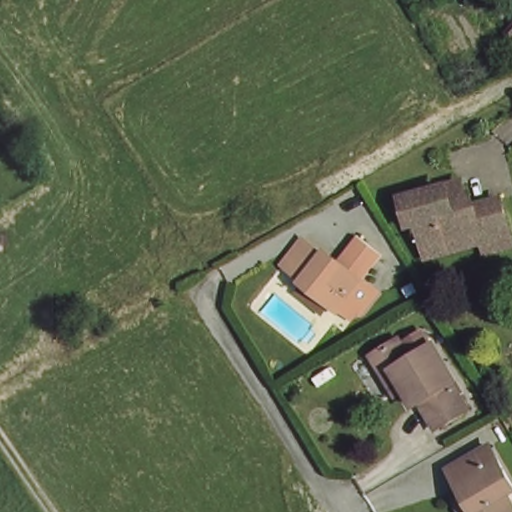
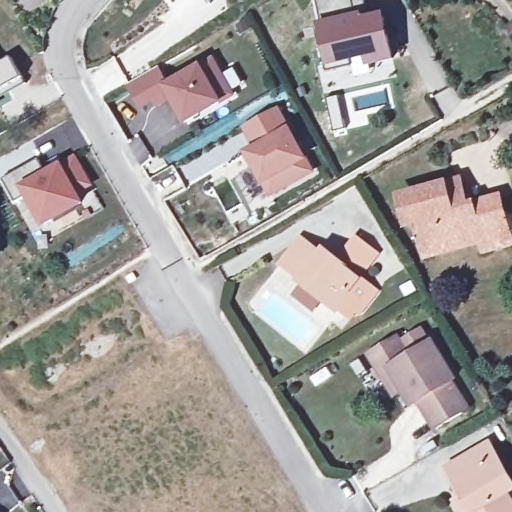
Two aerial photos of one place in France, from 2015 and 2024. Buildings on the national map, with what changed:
new [(326,69),(316,22),(324,20),(318,0),(367,0),(372,16),(384,14),(396,64),(366,69),(364,61),(326,69)]
new [(0,98),(0,64),(10,59),(22,79),(26,84),(0,98)]
new [(157,70),(168,88),(213,62),(233,96),(188,124),(173,98),(159,106),(155,100),(142,108),(129,86),(143,79),(157,70)]
new [(277,110),(313,174),(273,196),(250,155),(259,150),(246,128),(277,110)]
new [(42,161),(51,177),(78,161),(93,186),(79,194),(85,205),(49,226),(33,197),(20,204),(6,181),(42,161)]
unchanged [(487,259),(484,245),(430,259),(428,250),(420,226),(411,230),(403,203),(459,186),(466,212),(500,201),(511,237),(512,243),(512,253),(487,259)]
unchanged [(334,261),(356,236),(379,255),(358,280),(334,261)]
unchanged [(376,295),(358,315),(354,313),(346,322),(296,284),(301,279),(281,264),(300,241),(318,256),(322,252),(334,261),(358,280),(376,295)]
unchanged [(393,394),(371,357),(398,340),(409,357),(433,343),(453,377),(449,380),(466,406),(434,425),(418,399),(412,403),(403,409),(393,394)]
unchanged [(464,509),(472,504),(454,477),(493,452),(512,483),(512,501),(509,503),(512,507),(512,512),(466,512),(464,509)]

